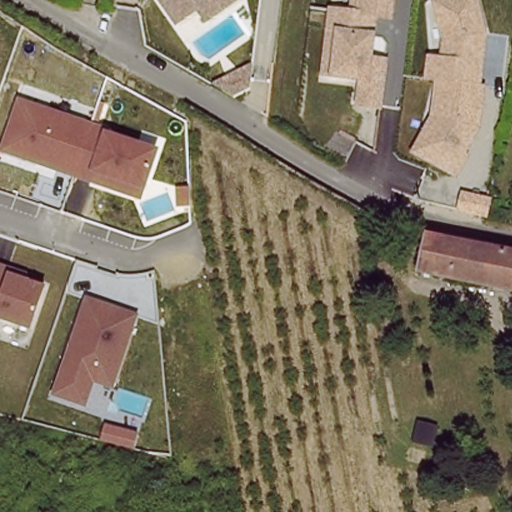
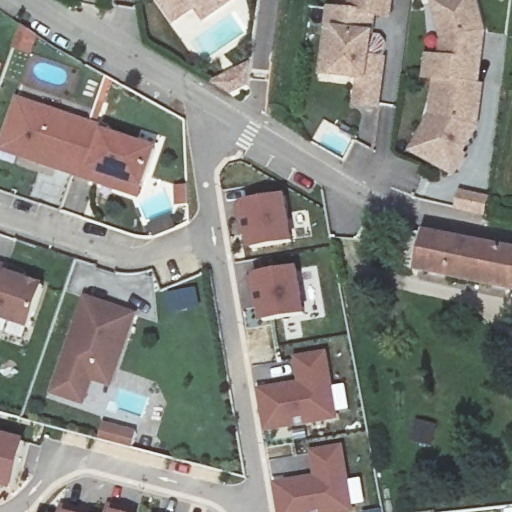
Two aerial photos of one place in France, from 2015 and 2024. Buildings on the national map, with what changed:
unchanged [(205,22),(194,5),(173,18),(161,0),(238,0),(205,22)]
unchanged [(353,107),(356,81),(327,76),(333,29),(323,28),(327,6),(348,9),(350,0),(395,0),(390,36),(377,35),(375,57),(387,58),(382,109),(353,107)]
unchanged [(487,37),(482,85),(485,86),(480,130),(467,153),(470,155),(457,180),(410,154),(430,119),(435,82),(422,81),(427,55),(440,56),(442,38),(432,0),(479,0),(487,37)]
new [(246,55),(241,85),(225,95),(204,82),(246,55)]
unchanged [(0,147),(15,101),(107,133),(160,152),(145,192),(140,200),(0,152),(0,147)]
new [(282,192),(289,240),(245,247),(238,200),(282,192)]
unchanged [(470,282),(435,274),(437,236),(457,241),(512,251),(512,291),(470,282)]
unchanged [(0,263),(27,272),(24,278),(47,284),(33,330),(0,320),(0,263)]
new [(296,265),(303,313),(258,319),(250,271),(296,265)]
unchanged [(49,395),(85,297),(137,315),(112,389),(93,382),(83,407),(49,395)]
new [(326,351),(337,419),(262,433),(256,387),(296,381),(292,356),(326,351)]
new [(7,494),(0,493),(0,437),(18,442),(7,494)]
new [(352,512),(276,512),(272,482),(312,476),(308,450),(342,446),(352,512)]
new [(384,512),(365,512),(384,510),(384,512)]

